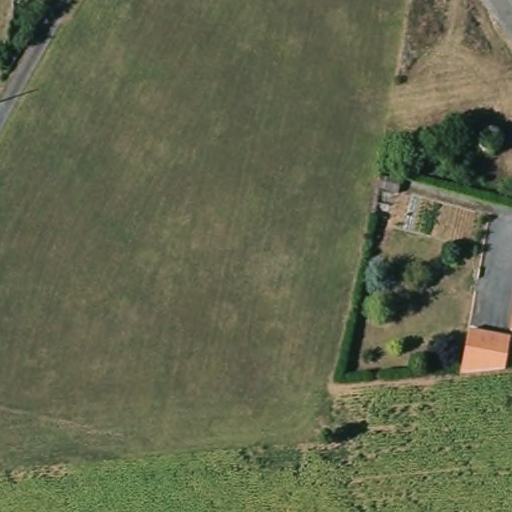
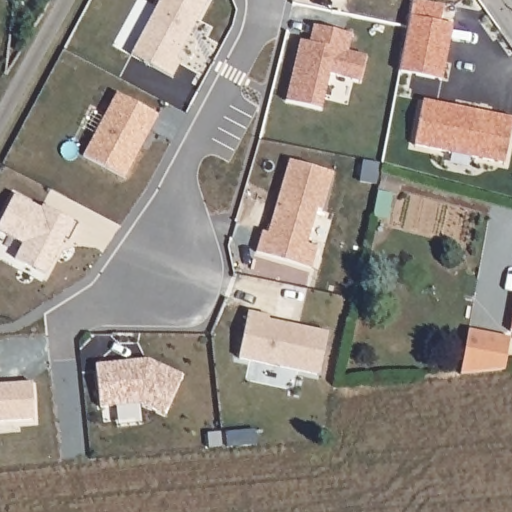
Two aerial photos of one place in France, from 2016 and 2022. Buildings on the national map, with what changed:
new [(180,61),(172,78),(131,55),(160,0),(206,0),(207,1),(176,59),(180,61)]
new [(399,72),(410,16),(452,25),(442,80),(399,72)]
new [(322,110),(285,102),(300,40),(309,42),(313,25),(352,35),(349,51),(367,55),(361,81),(330,73),(322,110)]
new [(124,179),(82,156),(116,93),(158,115),(124,179)]
new [(423,99),(512,118),(512,123),(504,163),(414,145),(423,99)]
demolished [(471,145),(466,174),(444,170),(449,140),(471,145)]
new [(255,253),(261,231),(267,233),(289,159),(334,172),(323,210),(318,208),(307,243),(318,246),(311,269),(255,253)]
unchanged [(512,307),(512,332),(507,331),(512,307)]
new [(238,358),(248,311),(270,315),(269,319),(328,331),(319,376),(238,358)]
unchanged [(456,366),(464,329),(505,338),(500,362),(456,366)]
new [(95,364),(148,358),(183,374),(164,415),(140,403),(99,408),(95,364)]
new [(0,422),(0,384),(32,382),(35,420),(0,422)]

